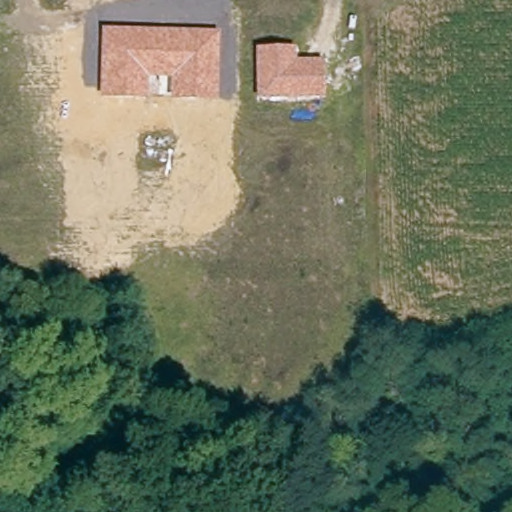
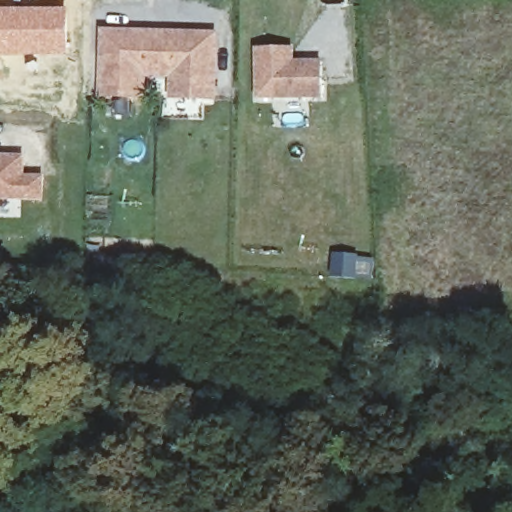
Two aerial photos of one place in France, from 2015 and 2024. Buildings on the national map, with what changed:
new [(68,56),(0,57),(0,8),(69,8),(68,56)]
unchanged [(169,98),(170,79),(146,77),(144,98),(99,96),(101,28),(218,32),(215,99),(169,98)]
unchanged [(294,45),(294,59),(321,59),(321,96),(257,98),(256,48),(294,45)]
new [(26,174),(45,174),(44,202),(0,200),(0,154),(26,154),(26,174)]

